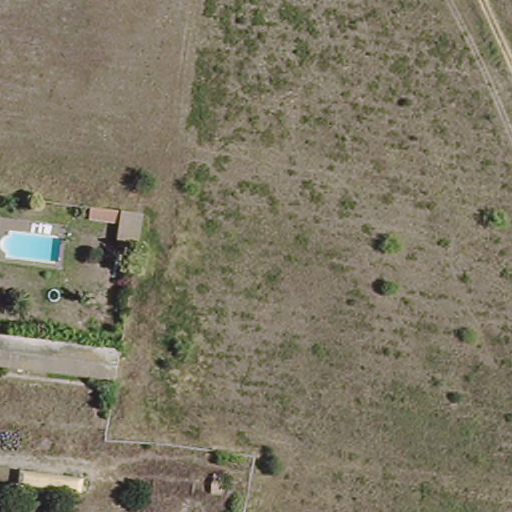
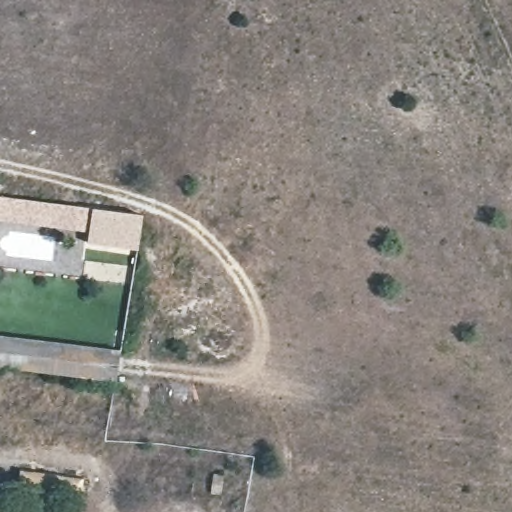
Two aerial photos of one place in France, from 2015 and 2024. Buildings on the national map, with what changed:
new [(89,232),(0,220),(0,197),(92,210),(89,232)]
new [(137,249),(87,243),(89,232),(92,210),(142,215),(137,249)]
demolished [(117,216),(139,219),(134,250),(111,247),(117,216)]
unchanged [(115,387),(0,371),(0,340),(120,356),(115,387)]

